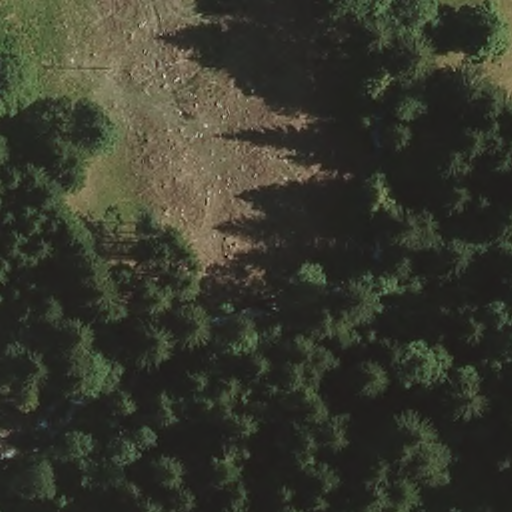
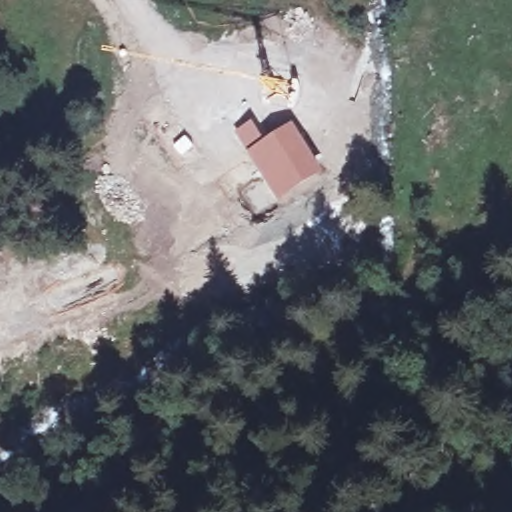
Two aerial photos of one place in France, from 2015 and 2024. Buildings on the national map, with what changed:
new [(252,117),(266,137),(293,122),(325,172),(277,200),(233,130),(252,117)]

